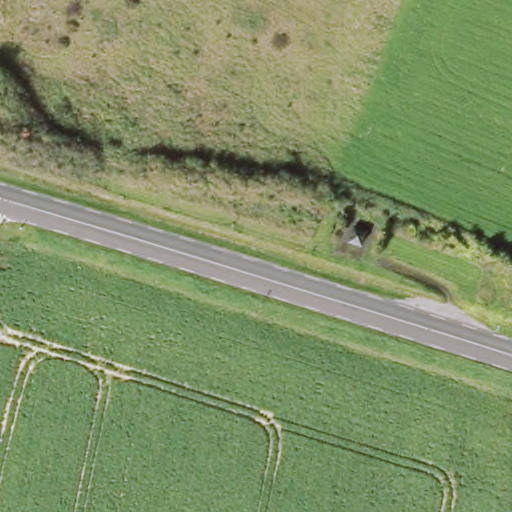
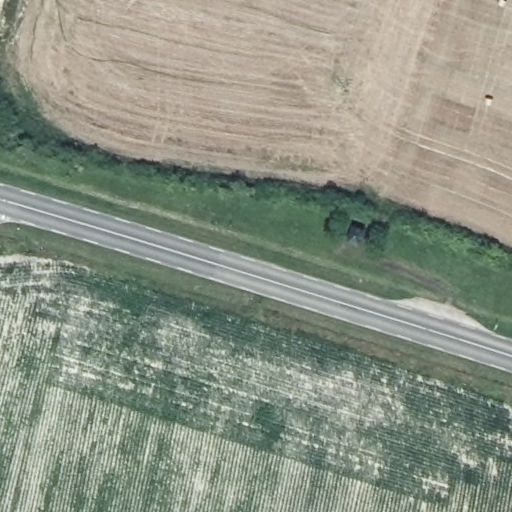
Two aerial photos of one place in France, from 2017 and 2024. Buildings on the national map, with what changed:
unchanged [(354,229),(365,233),(362,248),(350,244),(354,229)]

